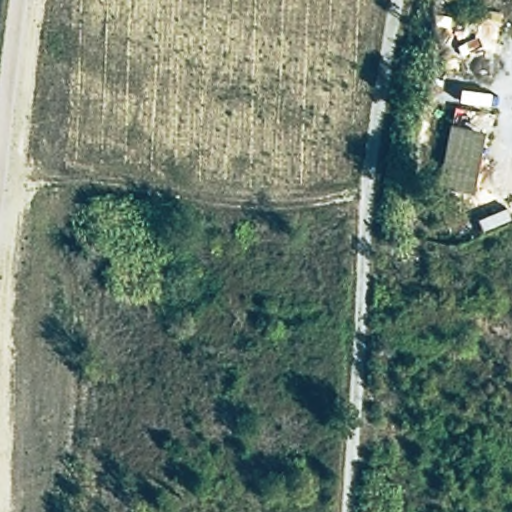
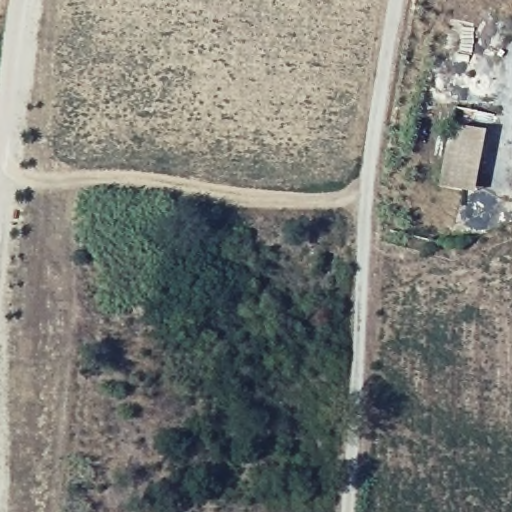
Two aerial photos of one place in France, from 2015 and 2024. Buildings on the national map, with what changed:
unchanged [(491,118),(477,196),(437,190),(452,109),(491,118)]

